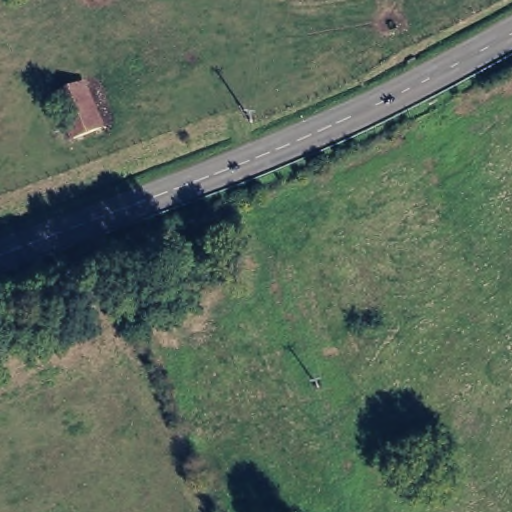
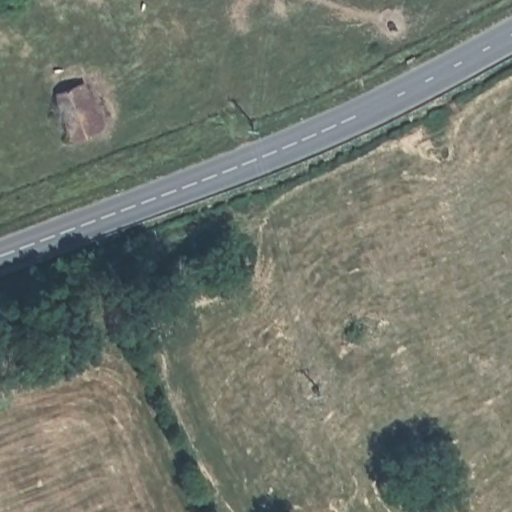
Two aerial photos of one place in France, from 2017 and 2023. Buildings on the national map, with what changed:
unchanged [(82,81),(98,126),(69,136),(54,91),(82,81)]

